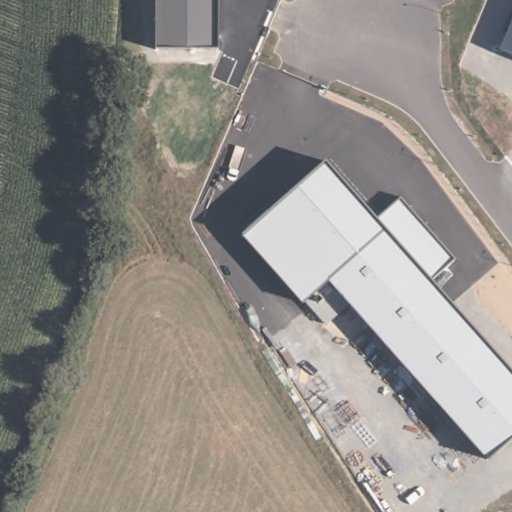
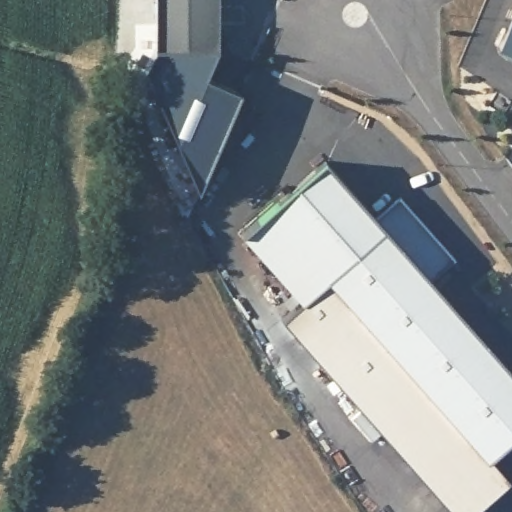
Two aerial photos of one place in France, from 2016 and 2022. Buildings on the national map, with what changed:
unchanged [(156,47),(157,0),(218,0),(217,47),(156,47)]
unchanged [(500,50),(512,22),(512,55),(500,50)]
unchanged [(326,324),(309,297),(303,302),(242,236),(326,160),(378,220),(400,198),(454,257),(432,282),(512,370),(512,434),(485,457),(355,308),(326,324)]
new [(309,297),(326,324),(355,308),(485,457),(488,455),(511,480),(475,512),(452,512),(281,319),(303,302),(309,297)]

